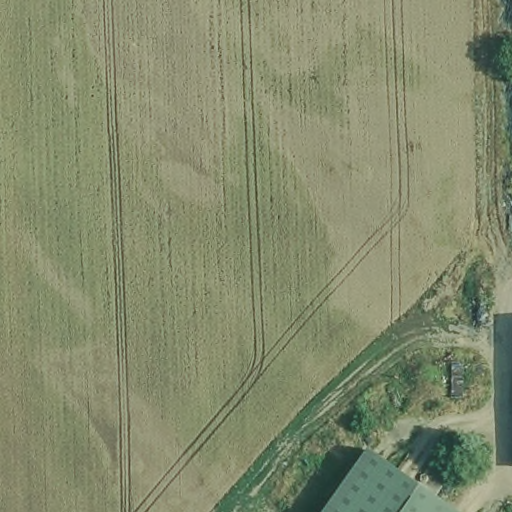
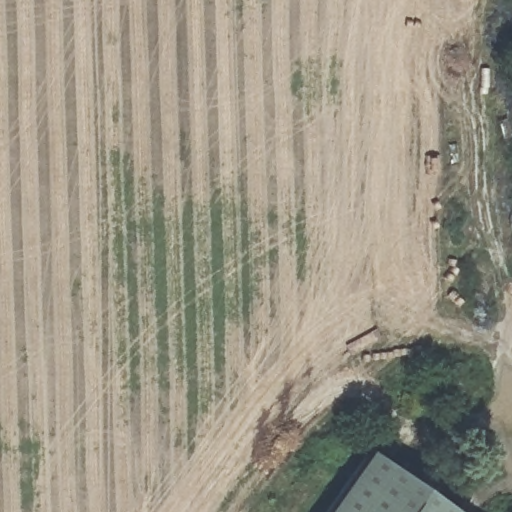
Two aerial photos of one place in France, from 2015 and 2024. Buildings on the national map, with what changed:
unchanged [(421,489),(454,512),(333,512),(374,456),(421,489)]

